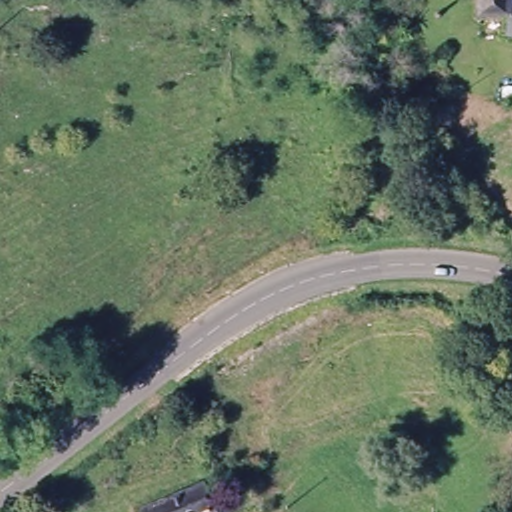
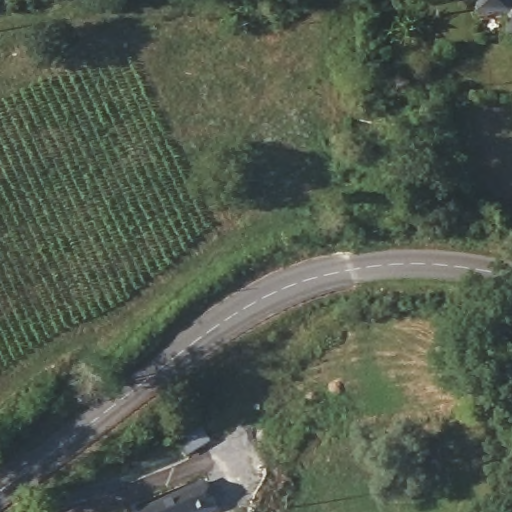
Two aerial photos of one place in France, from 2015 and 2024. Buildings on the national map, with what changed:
unchanged [(482,0),(512,0),(512,20),(482,15),(482,0)]
unchanged [(211,512),(138,512),(137,509),(206,492),(211,512)]

